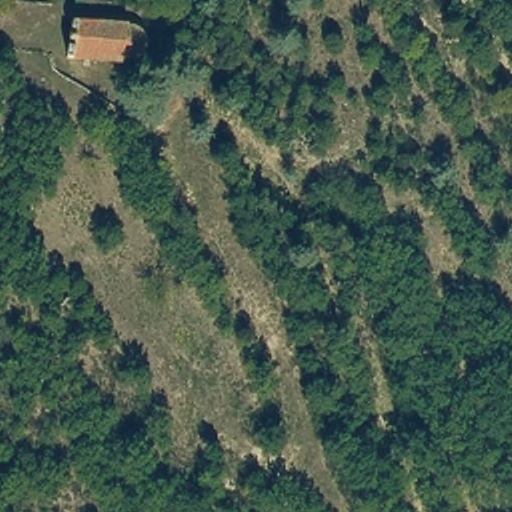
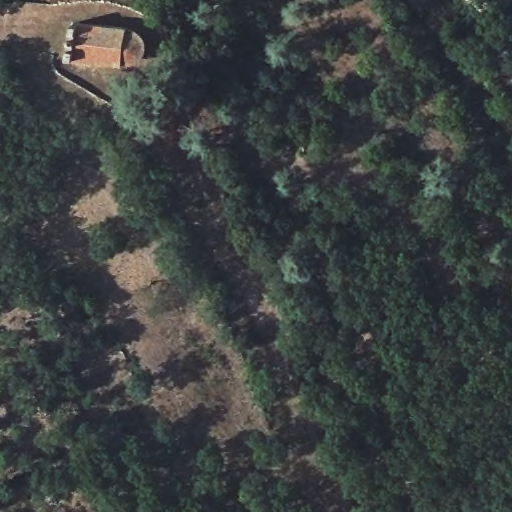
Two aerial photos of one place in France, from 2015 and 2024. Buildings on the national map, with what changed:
unchanged [(69,14),(138,22),(152,34),(153,51),(152,70),(130,77),(68,63),(69,14)]

